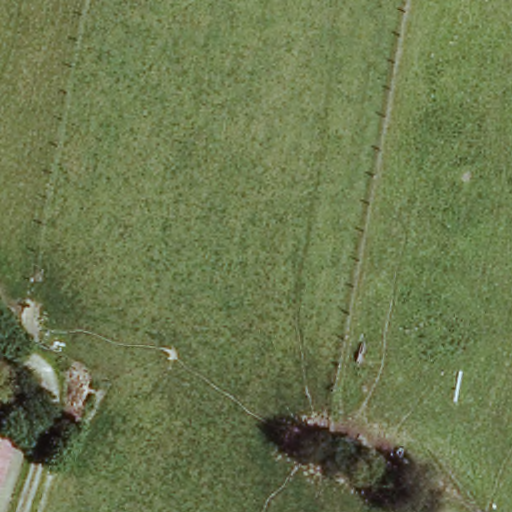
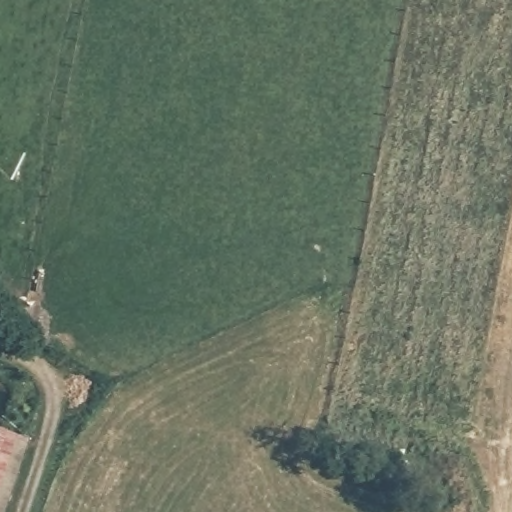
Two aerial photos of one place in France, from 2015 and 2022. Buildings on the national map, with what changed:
unchanged [(30,433),(7,512),(0,512),(0,423),(2,424),(30,433)]

